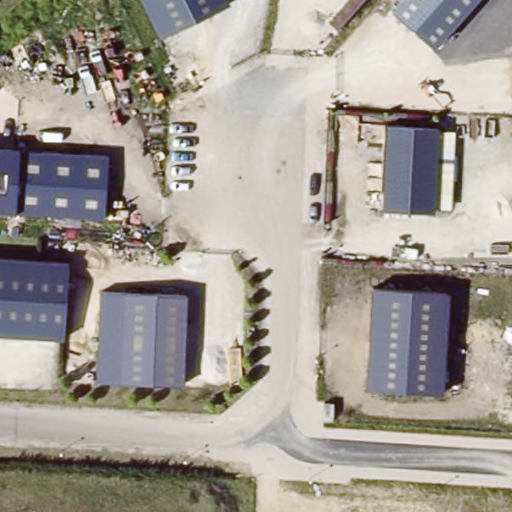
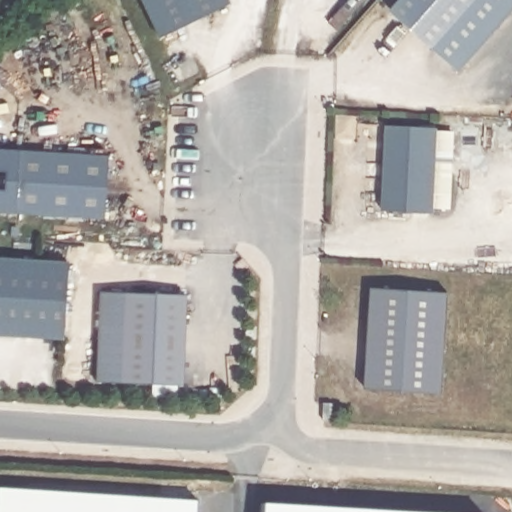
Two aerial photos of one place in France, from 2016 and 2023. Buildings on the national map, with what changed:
unchanged [(229,5),(158,38),(140,0),(227,0),(229,5)]
unchanged [(400,0),(476,0),(434,47),(391,10),(400,0)]
unchanged [(398,119),(447,122),(442,209),(393,206),(398,119)]
unchanged [(103,216),(15,208),(0,207),(0,145),(19,146),(106,152),(103,216)]
unchanged [(62,338),(0,335),(0,255),(66,260),(62,338)]
unchanged [(382,283),(459,287),(454,390),(376,386),(382,283)]
unchanged [(183,293),(181,385),(97,382),(98,289),(183,293)]
new [(0,512),(0,485),(200,497),(199,512),(0,512)]

